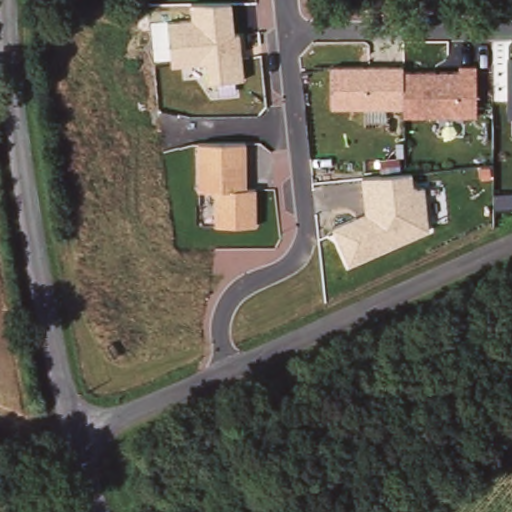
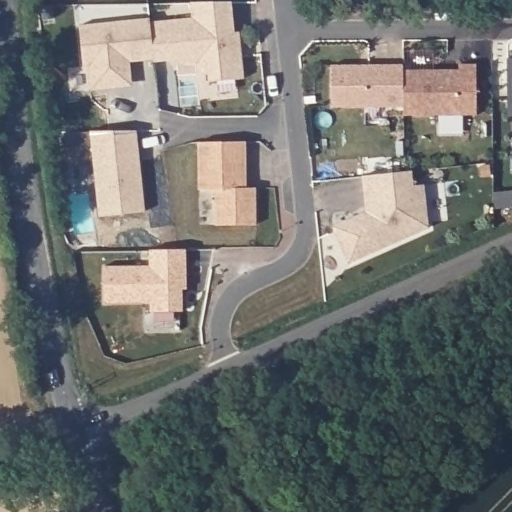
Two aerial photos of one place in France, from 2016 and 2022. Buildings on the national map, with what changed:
unchanged [(167,22),(191,19),(190,4),(230,2),(234,32),(239,32),(243,79),(208,83),(206,64),(171,66),(167,22)]
new [(170,62),(130,64),(133,87),(91,91),(89,67),(84,68),(80,26),(150,17),(150,21),(167,22),(170,62)]
unchanged [(505,60),(512,60),(512,119),(505,119),(505,60)]
unchanged [(332,66),(403,66),(403,70),(459,71),(458,65),(476,66),(477,115),(402,115),(402,107),(331,109),(332,66)]
new [(145,212),(99,214),(90,132),(135,132),(145,212)]
unchanged [(215,226),(215,190),(199,190),(198,144),(245,143),(247,191),(255,190),(256,226),(215,226)]
unchanged [(330,227),(365,211),(361,175),(412,171),(413,184),(426,183),(429,227),(348,263),(330,227)]
new [(149,251),(185,250),(185,267),(185,290),(181,290),(182,312),(150,312),(150,303),(104,303),(103,267),(149,267),(149,251)]

